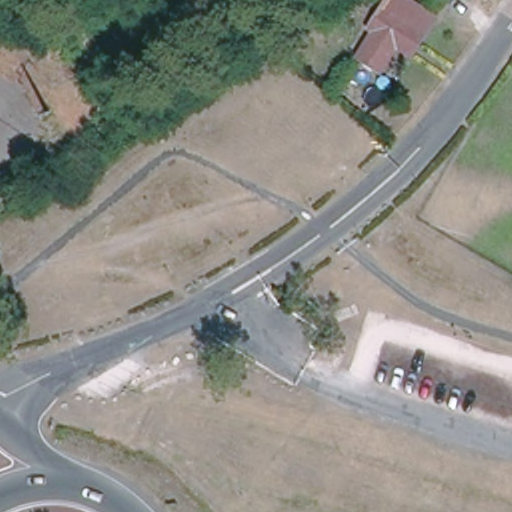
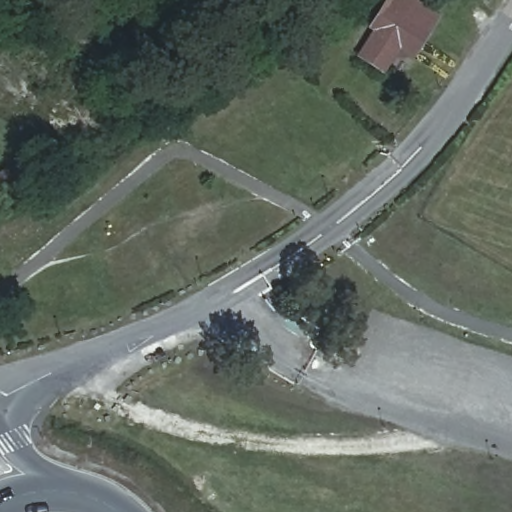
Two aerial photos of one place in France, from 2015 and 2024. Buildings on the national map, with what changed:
unchanged [(407,48),(402,46),(387,71),(363,56),(379,31),(374,28),(392,0),(416,0),(442,17),(431,34),(419,27),(407,48)]

